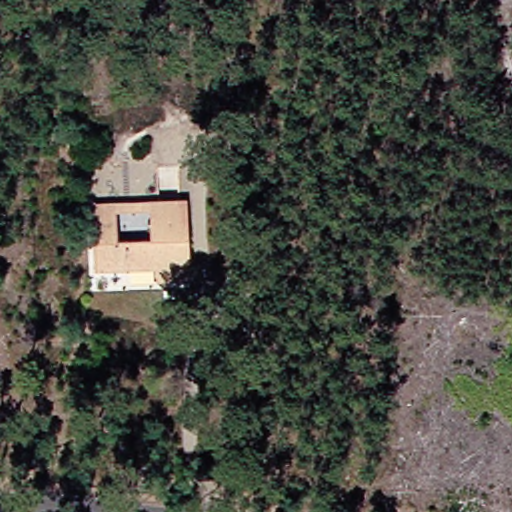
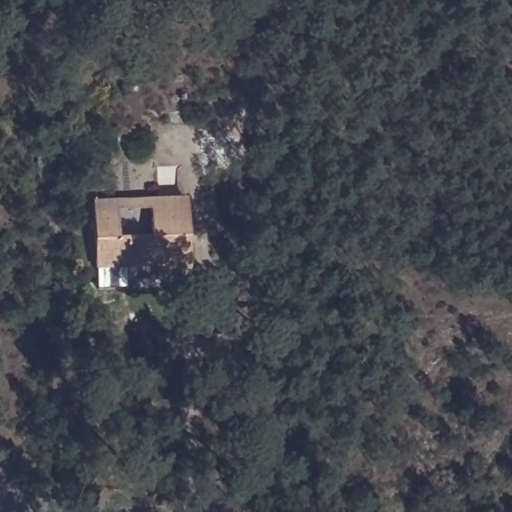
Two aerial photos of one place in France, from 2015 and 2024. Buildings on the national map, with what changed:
unchanged [(146,284),(145,268),(86,271),(84,202),(107,201),(109,240),(147,239),(145,199),(178,198),(181,267),(182,282),(146,284)]
unchanged [(145,199),(147,239),(109,240),(107,201),(145,199)]

